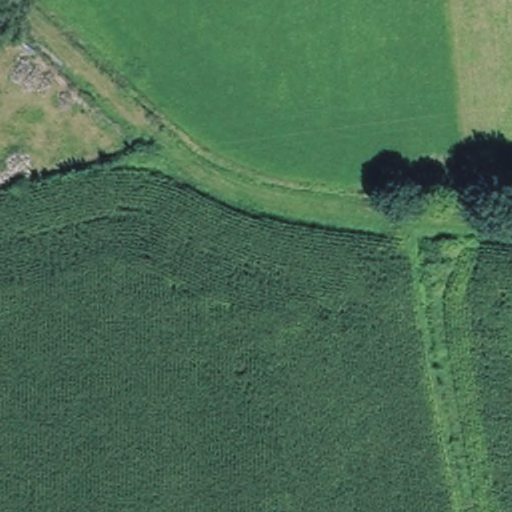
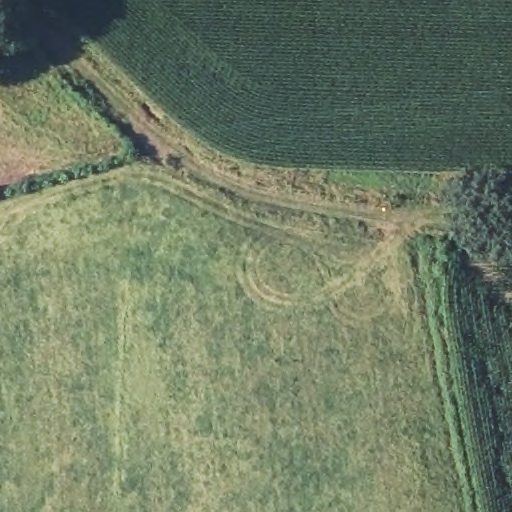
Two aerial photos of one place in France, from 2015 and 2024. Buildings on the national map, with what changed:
unchanged [(0,46),(0,15),(15,28),(0,46)]

